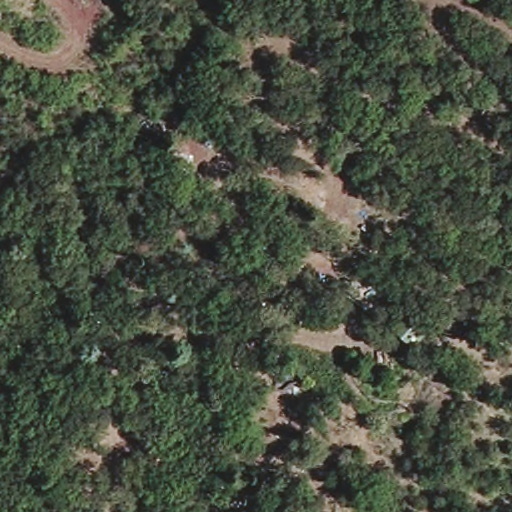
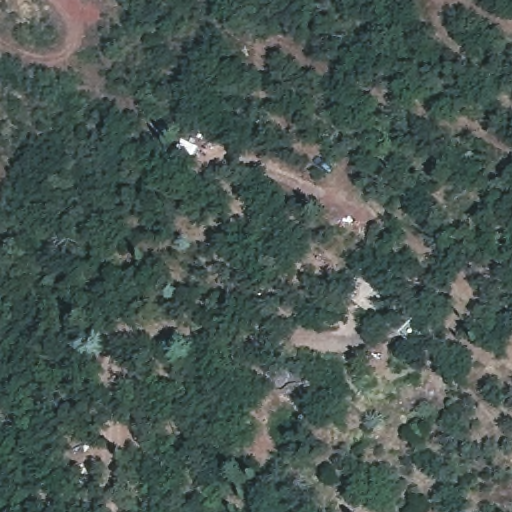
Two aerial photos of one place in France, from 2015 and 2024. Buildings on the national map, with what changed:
unchanged [(371,268),(372,312),(336,313),(336,269),(371,268)]

